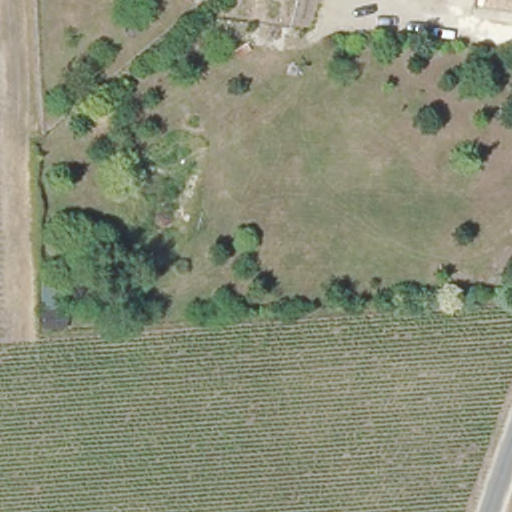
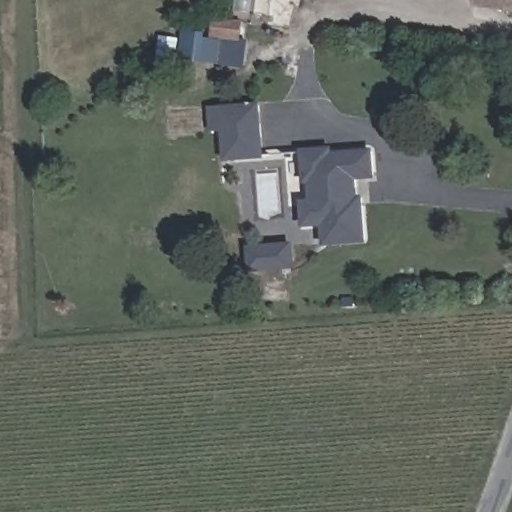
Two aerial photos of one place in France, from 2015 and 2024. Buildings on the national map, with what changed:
unchanged [(512,9),(478,4),(478,0),(512,0),(512,9)]
new [(214,19),(245,23),(243,39),(249,39),(246,67),(181,59),(185,32),(212,35),(214,19)]
new [(212,132),(210,107),(223,105),(262,102),(267,157),(227,160),(224,131),(212,132)]
new [(369,242),(324,245),(323,226),(304,228),(303,200),(312,199),(311,183),(305,184),(303,149),(334,146),(335,152),(376,147),(378,178),(358,179),(360,195),(365,195),(369,242)]

